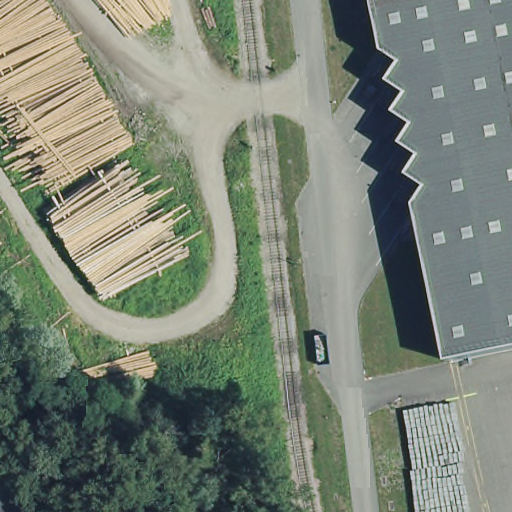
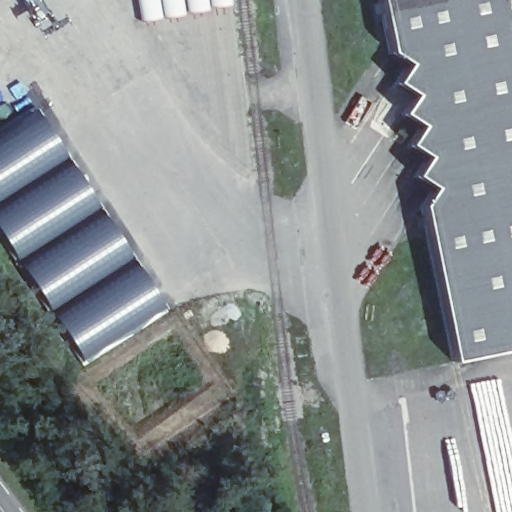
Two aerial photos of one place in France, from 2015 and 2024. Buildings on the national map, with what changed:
unchanged [(451,363),(420,208),(432,190),(413,177),(425,157),(408,145),(420,127),(401,116),(413,97),(395,87),(407,65),(389,55),(377,0),(512,0),(512,351),(451,363)]
new [(82,175),(140,267),(136,270),(133,267),(126,272),(137,282),(138,284),(147,277),(167,308),(83,363),(49,316),(0,241),(0,126),(35,106),(82,175)]
demolished [(132,137),(147,133),(147,123),(186,114),(200,171),(152,182),(132,137)]

